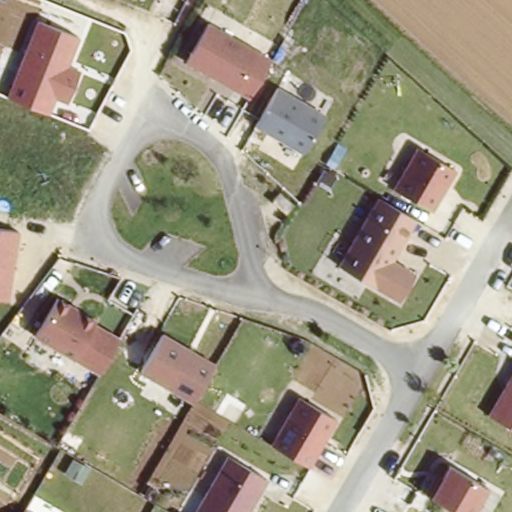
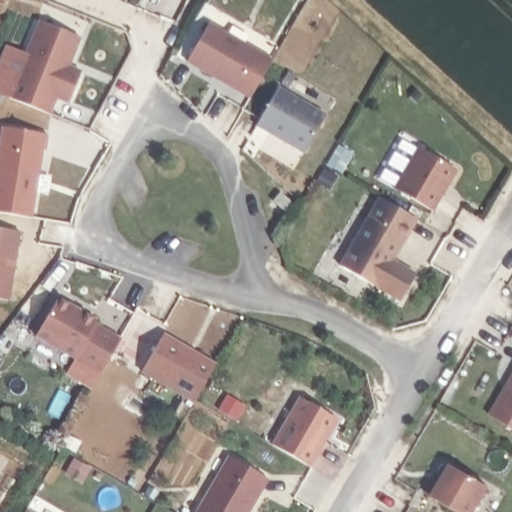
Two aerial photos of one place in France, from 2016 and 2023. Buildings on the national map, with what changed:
unchanged [(6,98),(36,21),(79,39),(69,65),(80,70),(68,104),(57,99),(50,115),(6,98)]
unchanged [(260,49),(235,91),(188,63),(210,22),(260,49)]
new [(6,98),(0,95),(0,55),(4,45),(24,53),(6,98)]
unchanged [(256,128),(279,87),(325,116),(303,152),(256,128)]
new [(2,128),(47,135),(45,151),(42,151),(31,218),(0,213),(0,136),(2,128)]
unchanged [(456,170),(430,216),(390,192),(415,146),(456,170)]
unchanged [(337,267),(377,198),(416,222),(396,261),(418,274),(400,303),(337,267)]
unchanged [(21,232),(10,303),(0,300),(0,228),(21,232)]
unchanged [(99,319),(77,357),(38,333),(61,294),(99,319)]
unchanged [(99,319),(121,335),(98,372),(77,357),(99,319)]
unchanged [(164,334),(214,363),(192,404),(141,374),(164,334)]
unchanged [(512,372),(512,432),(487,416),(512,372)]
unchanged [(296,398),(337,420),(312,466),(271,443),(296,398)]
unchanged [(248,512),(193,512),(227,452),(268,477),(248,512)]
unchanged [(470,512),(450,512),(429,500),(447,466),(484,487),(470,512)]
unchanged [(31,512),(24,512),(26,509),(31,512)]

